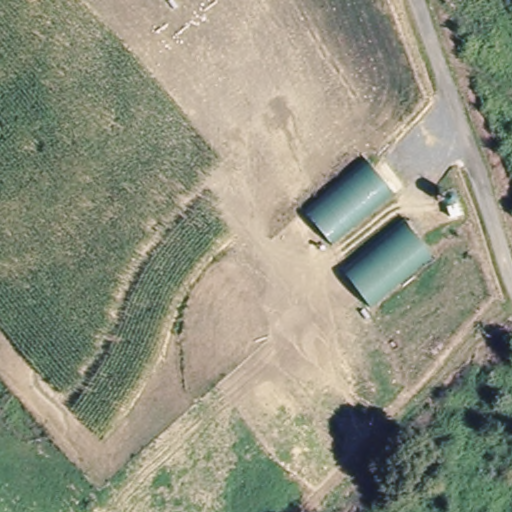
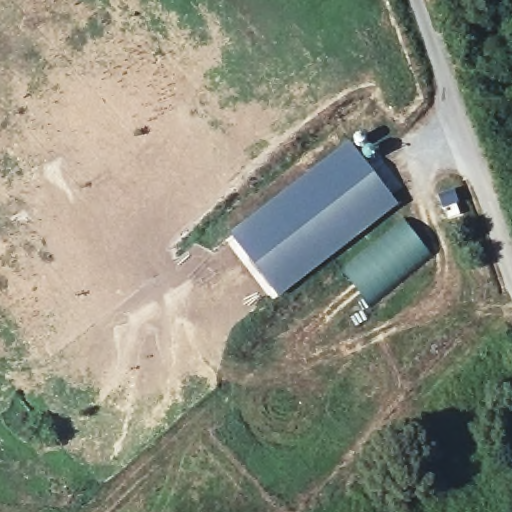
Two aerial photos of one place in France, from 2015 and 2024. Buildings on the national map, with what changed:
new [(278,301),(231,234),(361,134),(377,158),(366,166),(398,207),(278,301)]
demolished [(391,192),(331,242),(305,209),(366,160),(391,192)]
new [(453,191),(458,204),(445,209),(440,196),(453,191)]
new [(457,207),(460,215),(451,218),(448,210),(457,207)]
unchanged [(430,254),(370,303),(344,270),(404,220),(430,254)]

